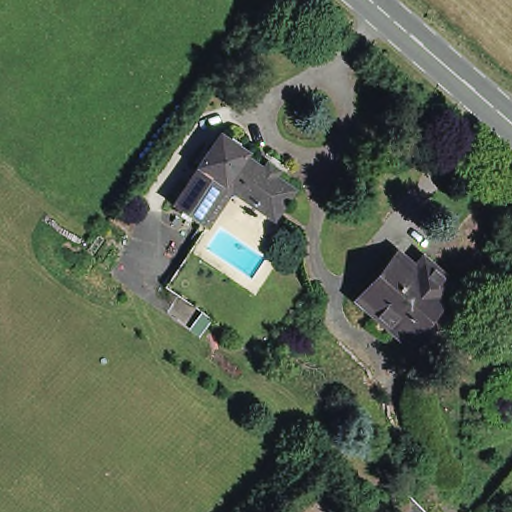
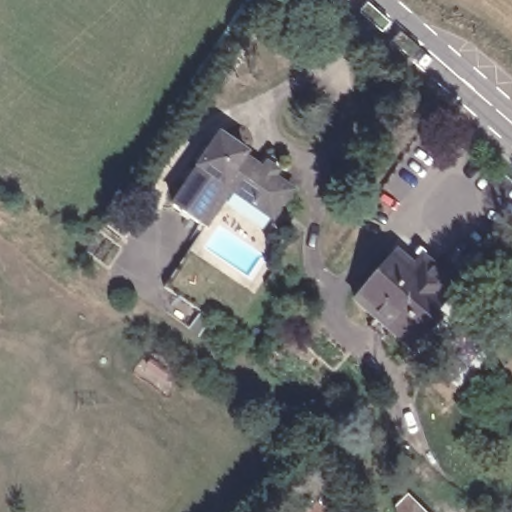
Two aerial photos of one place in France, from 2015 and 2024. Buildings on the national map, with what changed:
unchanged [(198,230),(198,231),(173,214),(198,176),(197,175),(201,169),(196,166),(203,157),(208,160),(219,143),(246,161),(244,164),(263,178),(267,171),(279,179),(274,185),(289,195),(293,198),(273,228),(269,224),(231,199),(206,235),(198,230)]
unchanged [(412,355),(406,349),(354,305),(397,257),(414,272),(422,262),(455,290),(447,300),(448,301),(428,324),(434,329),(412,355)]
unchanged [(395,507),(406,496),(423,512),(396,512),(395,507)]

